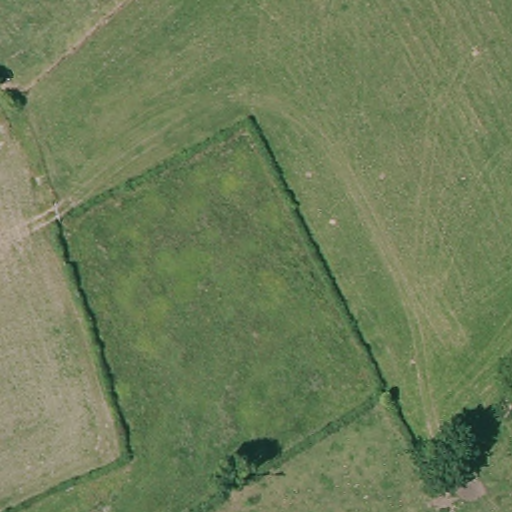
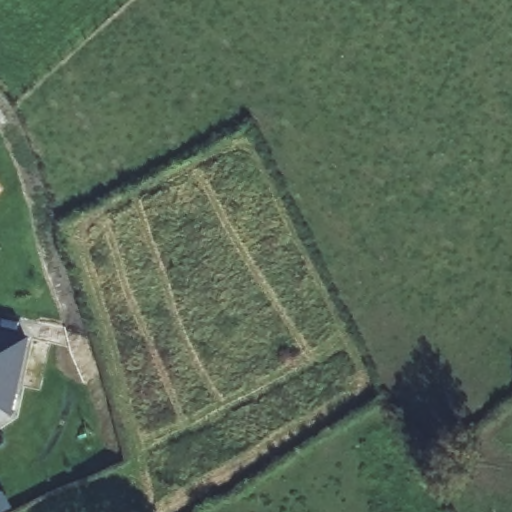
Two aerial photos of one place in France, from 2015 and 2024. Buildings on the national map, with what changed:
new [(0,189),(1,190),(0,191),(0,189)]
new [(0,329),(29,335),(12,416),(0,423),(0,329)]

